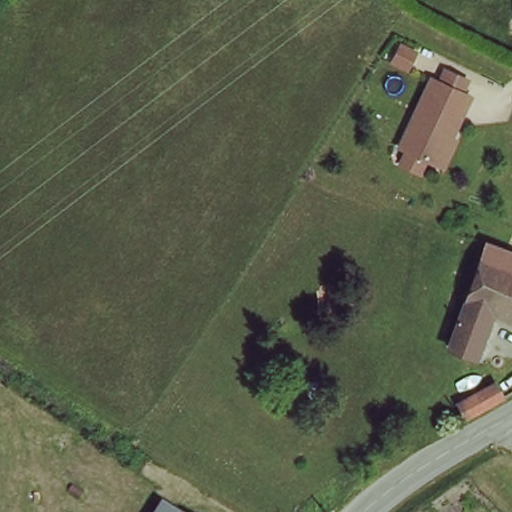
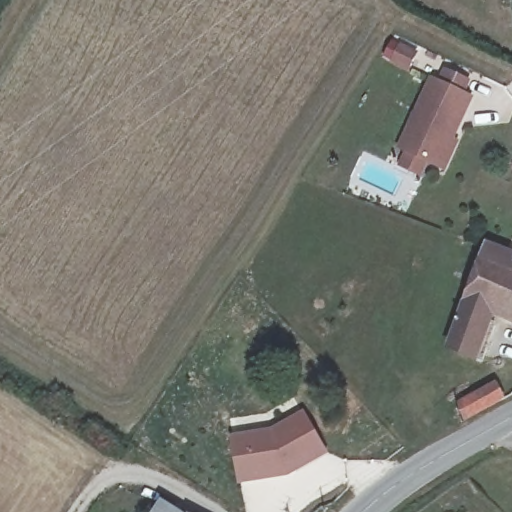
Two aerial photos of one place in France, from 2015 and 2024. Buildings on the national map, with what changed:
unchanged [(442,171),(427,163),(420,178),(388,160),(433,63),(468,78),(466,91),(475,95),(442,171)]
unchanged [(488,244),(512,255),(512,326),(504,322),(485,372),(445,354),(488,244)]
unchanged [(505,404),(469,426),(457,403),(493,383),(506,404),(505,404)]
new [(270,428),(305,409),(330,454),(288,477),(239,485),(230,435),(270,428)]
unchanged [(183,512),(155,512),(162,500),(183,512)]

